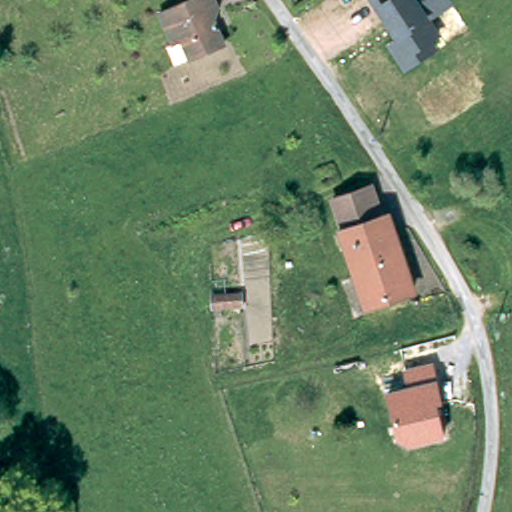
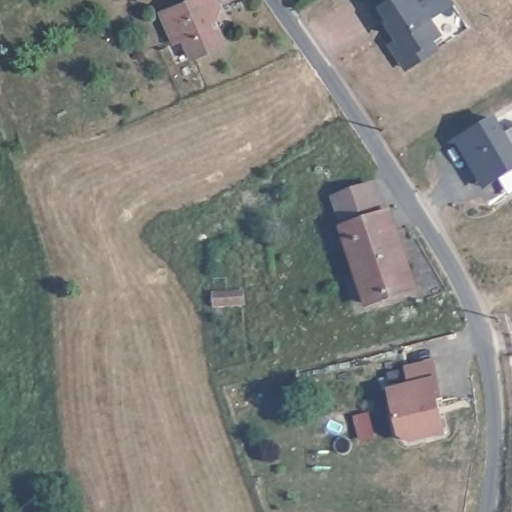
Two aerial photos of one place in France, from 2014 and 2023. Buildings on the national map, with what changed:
unchanged [(216,10),(208,13),(223,48),(190,63),(180,43),(172,46),(158,16),(193,0),(212,0),(216,10)]
unchanged [(454,4),(431,18),(442,35),(435,42),(438,48),(405,70),(385,42),(393,35),(370,0),(452,0),(454,4)]
new [(483,190),(454,140),(496,115),(505,131),(512,127),(512,174),(483,190)]
unchanged [(373,186),(382,215),(385,214),(390,231),(394,231),(411,286),(366,302),(344,228),(348,227),(338,197),(373,186)]
unchanged [(432,359),(444,403),(440,404),(446,435),(406,443),(399,437),(387,387),(407,381),(402,365),(432,359)]

